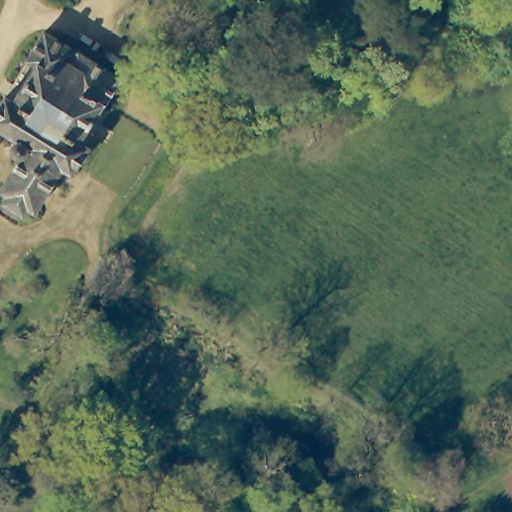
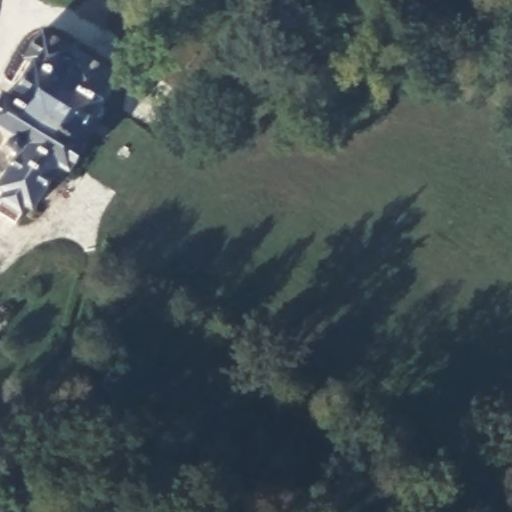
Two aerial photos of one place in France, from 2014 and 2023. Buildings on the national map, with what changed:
unchanged [(99,104),(75,139),(87,146),(69,172),(57,166),(32,207),(25,204),(15,220),(0,212),(0,197),(5,190),(0,187),(0,186),(19,156),(14,157),(10,155),(6,152),(4,149),(3,145),(7,134),(0,130),(0,97),(2,93),(12,99),(34,64),(26,59),(45,31),(120,78),(103,106),(99,104)]

